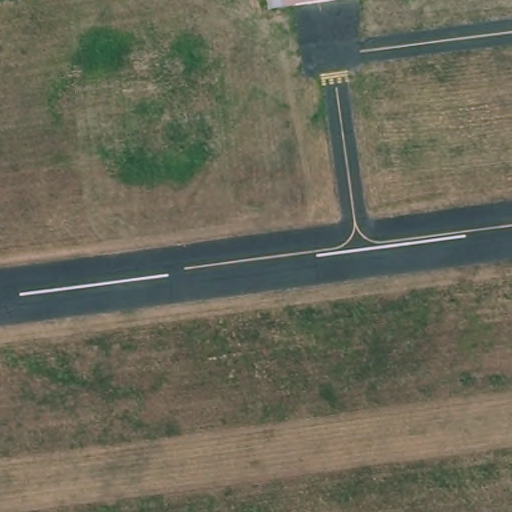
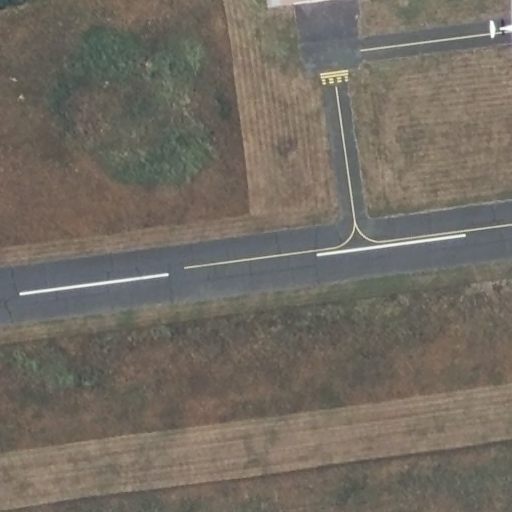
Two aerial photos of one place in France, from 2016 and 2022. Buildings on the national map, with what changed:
unchanged [(265,0),(360,0),(267,15),(265,0)]

